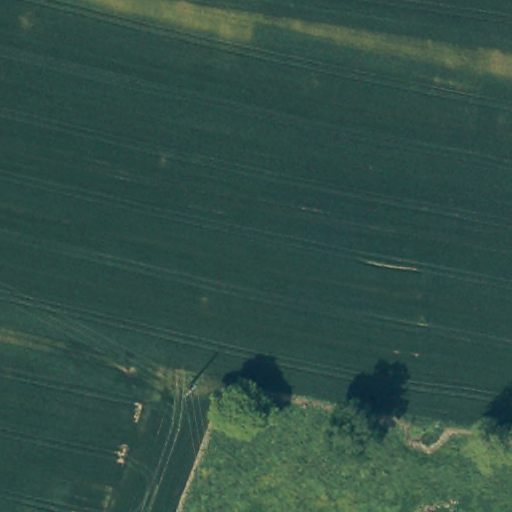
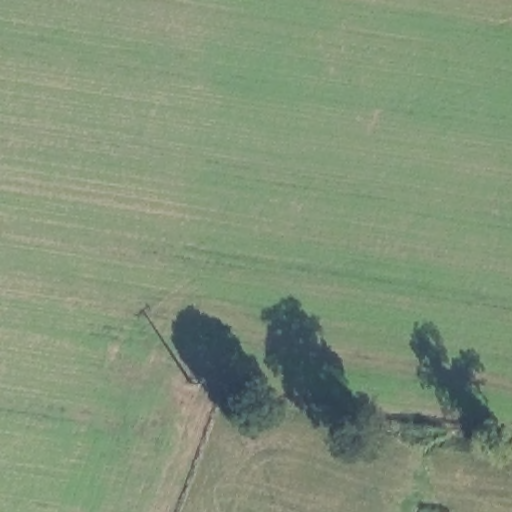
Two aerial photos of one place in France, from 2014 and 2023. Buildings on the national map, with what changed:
[]

